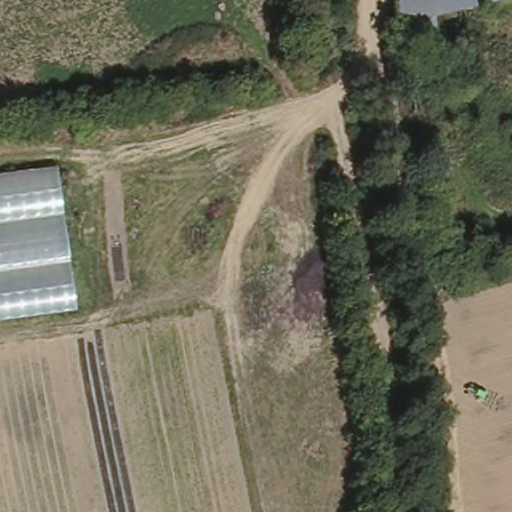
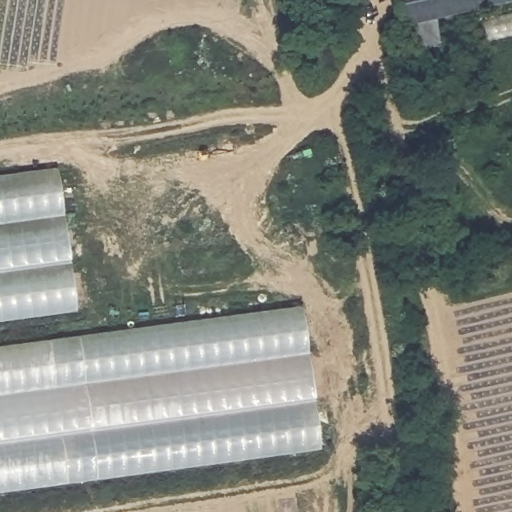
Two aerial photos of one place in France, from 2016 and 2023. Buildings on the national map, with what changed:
unchanged [(391,28),(387,0),(506,0),(398,25),(391,28)]
unchanged [(76,311),(0,322),(0,180),(59,173),(76,311)]
new [(322,449),(0,492),(0,343),(301,301),(322,449)]

